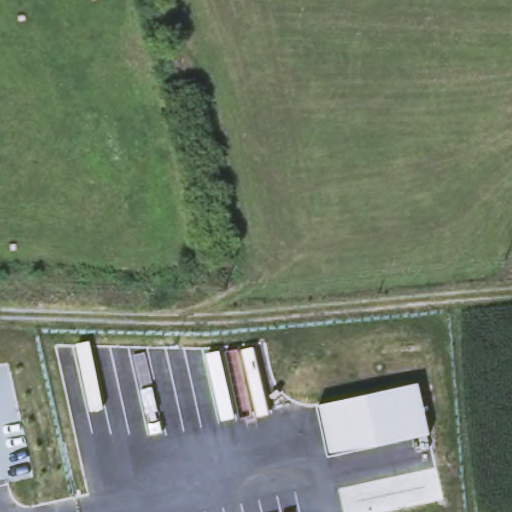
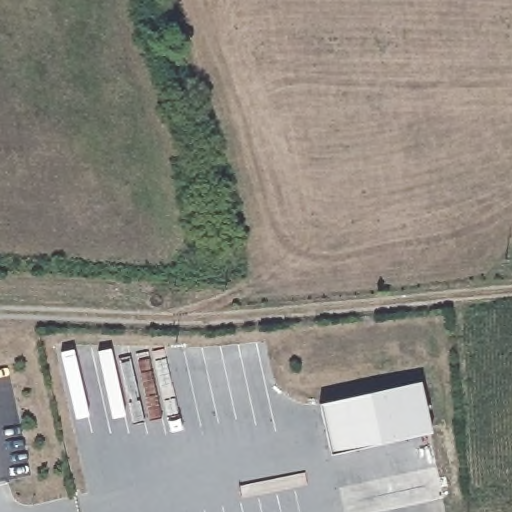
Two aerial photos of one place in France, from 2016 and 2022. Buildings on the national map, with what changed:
unchanged [(421,382),(432,433),(330,454),(319,404),(421,382)]

